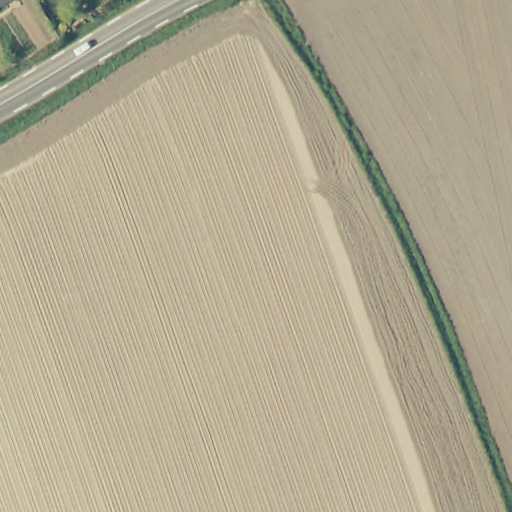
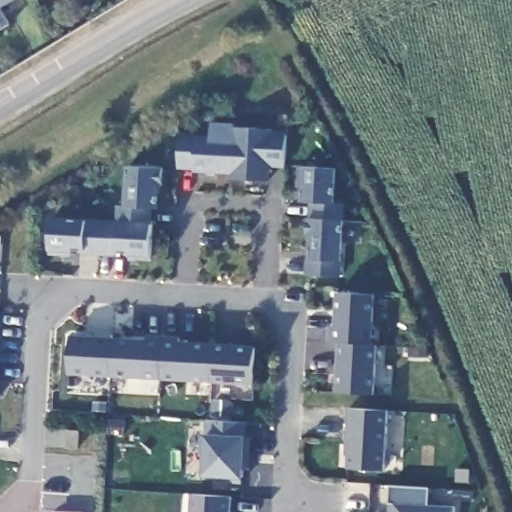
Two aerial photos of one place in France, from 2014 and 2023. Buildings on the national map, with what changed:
unchanged [(0,4),(0,0),(8,0),(0,4)]
new [(210,135),(210,122),(234,123),(234,126),(271,129),(272,131),(285,132),(283,169),(270,168),(269,181),(230,180),(230,173),(193,172),(193,169),(176,168),(180,132),(210,135)]
new [(114,220),(115,204),(124,204),(127,164),(163,166),(162,186),(159,186),(158,207),(155,207),(149,261),(129,259),(129,252),(120,252),(117,257),(71,252),(70,255),(49,254),(47,254),(50,215),(114,220)]
new [(334,203),(344,203),(340,276),(303,275),(309,203),(298,203),(298,187),(295,186),(297,165),(338,168),(334,203)]
unchanged [(371,342),(377,343),(374,394),(335,391),(339,340),(327,340),(329,325),(334,325),(336,291),(375,293),(371,342)]
new [(70,334),(146,338),(146,333),(180,335),(180,340),(256,344),(254,384),(68,374),(70,334)]
new [(383,470),(343,467),(348,407),(387,408),(383,470)]
new [(244,483),(217,483),(219,478),(203,477),(204,454),(198,453),(199,433),(204,433),(205,419),(248,422),(244,483)]
new [(427,504),(454,506),(454,512),(393,512),(393,504),(387,503),(389,485),(428,487),(427,504)]
new [(230,512),(190,512),(190,494),(230,495),(230,512)]

